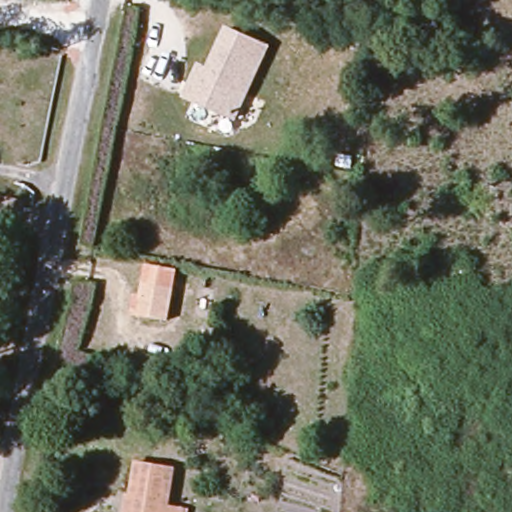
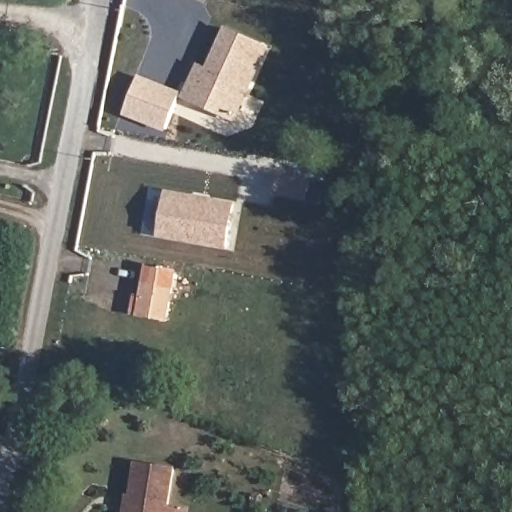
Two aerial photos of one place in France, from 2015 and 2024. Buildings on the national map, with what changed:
unchanged [(238,121),(182,99),(198,62),(208,66),(224,27),(271,46),(238,121)]
new [(138,75),(179,93),(164,127),(123,109),(138,75)]
new [(159,237),(167,189),(237,202),(229,249),(159,237)]
unchanged [(134,295),(145,297),(149,267),(177,272),(169,320),(143,315),(133,314),(134,295)]
unchanged [(195,379),(177,371),(184,343),(205,349),(195,379)]
unchanged [(143,391),(127,386),(133,364),(149,367),(143,391)]
unchanged [(174,467),(169,506),(183,509),(183,512),(129,512),(137,461),(174,467)]

